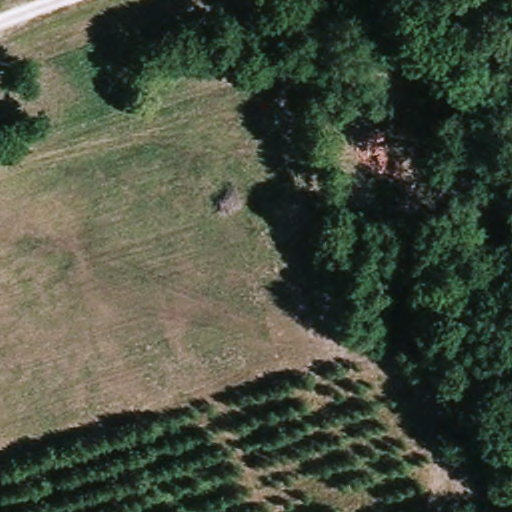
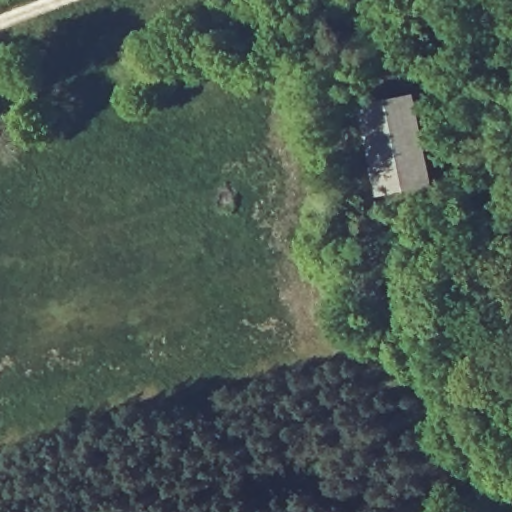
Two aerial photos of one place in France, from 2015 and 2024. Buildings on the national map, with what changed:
new [(362,104),(415,93),(434,185),(380,197),(362,104)]

